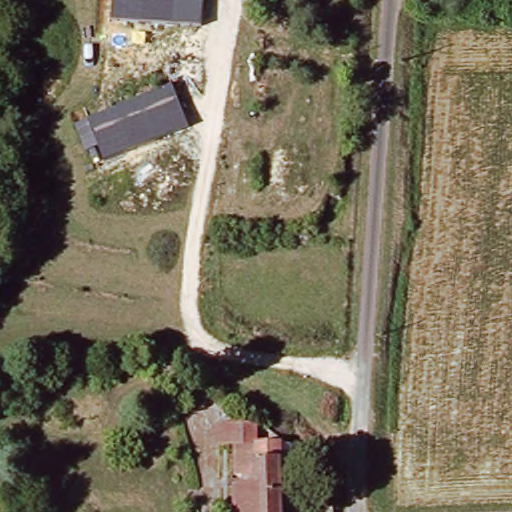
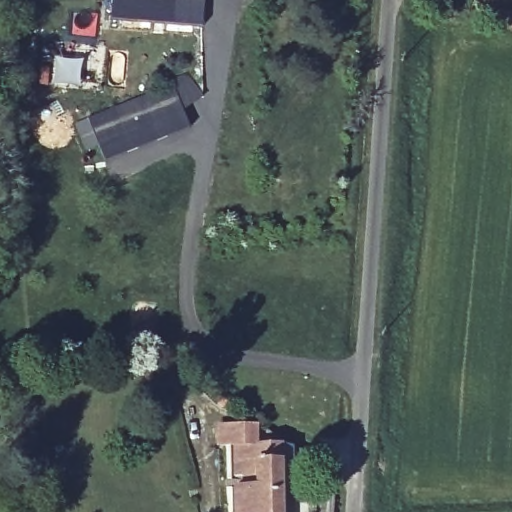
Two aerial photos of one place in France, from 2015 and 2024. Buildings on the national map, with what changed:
unchanged [(204,0),(202,25),(111,18),(112,0),(204,0)]
unchanged [(89,121),(175,87),(191,128),(104,161),(89,121)]
unchanged [(233,448),(217,446),(218,427),(246,428),(257,436),(257,444),(295,447),(292,496),(280,495),(279,512),(231,512),(233,448)]

